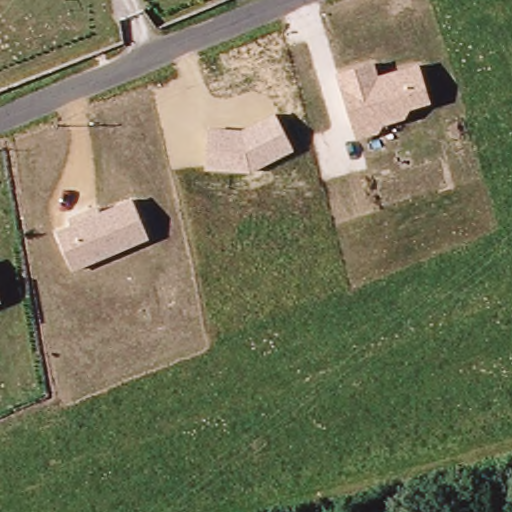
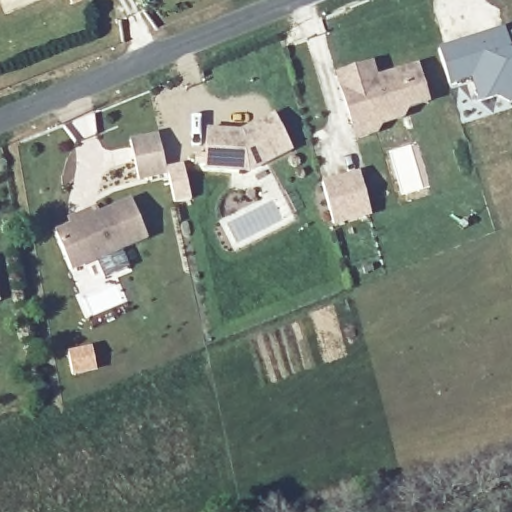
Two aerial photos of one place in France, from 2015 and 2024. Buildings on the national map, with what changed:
new [(508,104),(497,97),(478,104),(471,80),(449,85),(438,49),(504,27),(506,35),(512,33),(512,103),(508,104)]
unchanged [(376,75),(418,64),(430,103),(408,109),(405,119),(383,126),(378,132),(355,139),(334,72),(373,61),(376,75)]
unchanged [(293,151),(249,172),(204,170),(206,127),(241,130),(273,112),(293,151)]
new [(174,204),(168,176),(139,182),(130,139),(159,132),(166,167),(184,164),(191,200),(174,204)]
new [(371,217),(334,226),(323,182),(360,172),(371,217)]
unchanged [(98,212),(131,199),(148,239),(72,270),(54,229),(70,223),(67,217),(96,207),(98,212)]

